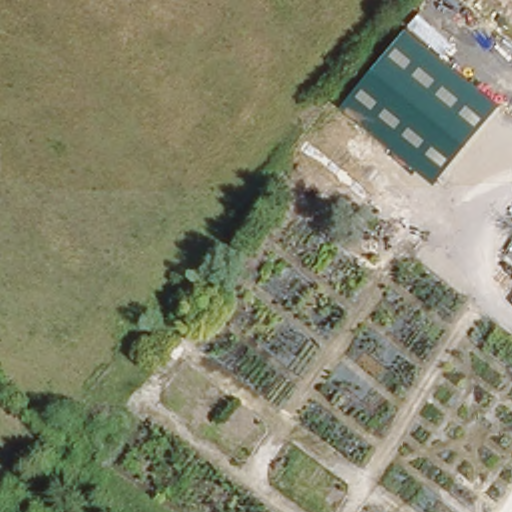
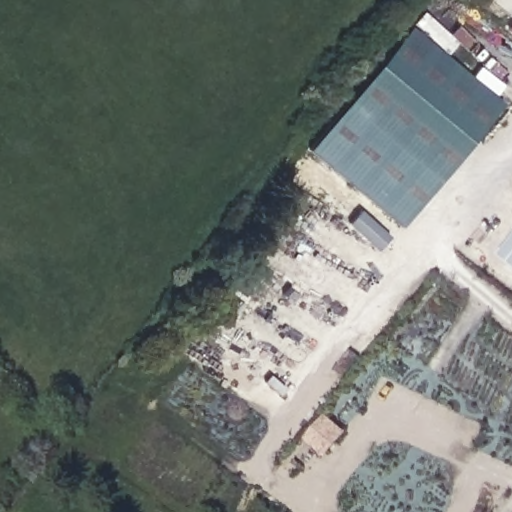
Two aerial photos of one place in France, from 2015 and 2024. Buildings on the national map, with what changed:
unchanged [(412,26),(503,102),(439,182),(347,105),(412,26)]
new [(401,228),(309,151),(347,105),(439,182),(401,228)]

